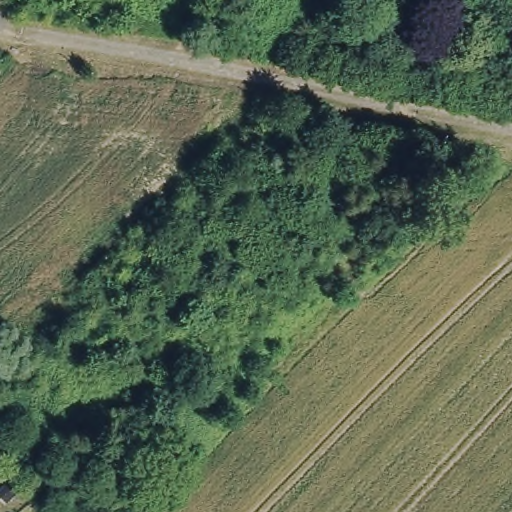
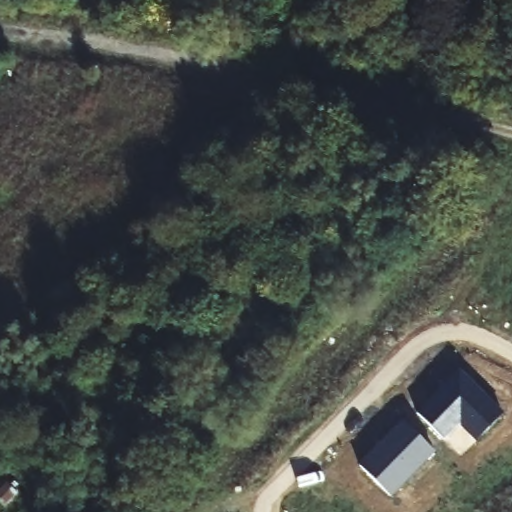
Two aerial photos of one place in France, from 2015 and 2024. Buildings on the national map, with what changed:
new [(502,413),(476,441),(459,425),(444,439),(417,413),(460,369),(502,413)]
new [(434,452),(391,496),(358,463),(403,419),(434,452)]

